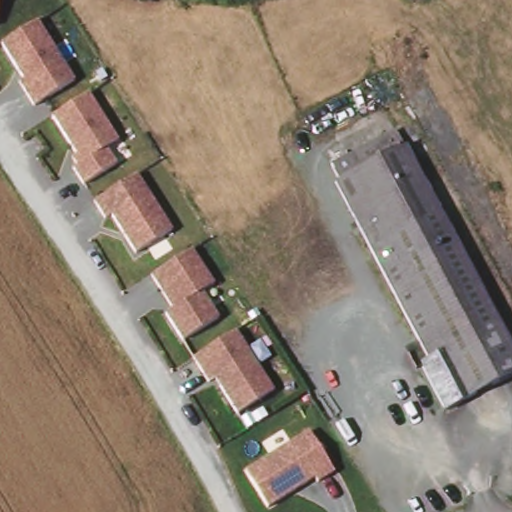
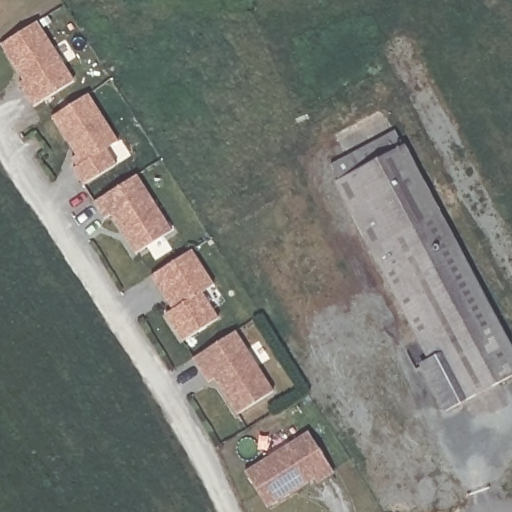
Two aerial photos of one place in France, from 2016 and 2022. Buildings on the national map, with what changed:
unchanged [(20,83),(24,81),(4,44),(38,21),(73,83),(36,107),(20,83)]
unchanged [(74,169),(78,166),(73,158),(76,155),(54,117),(89,94),(117,142),(109,148),(116,167),(86,185),(74,169)]
unchanged [(403,148),(512,348),(512,371),(447,411),(425,377),(419,368),(429,363),(387,287),(332,187),(403,148)]
unchanged [(112,216),(106,219),(97,201),(137,176),(171,232),(136,251),(112,216)]
unchanged [(214,286),(203,293),(221,321),(182,343),(164,313),(167,311),(145,275),(188,247),(214,286)]
unchanged [(274,391),(235,416),(214,381),(207,384),(189,356),(231,329),(274,391)]
unchanged [(335,472),(314,484),(312,480),(266,509),(242,471),(308,430),(335,472)]

